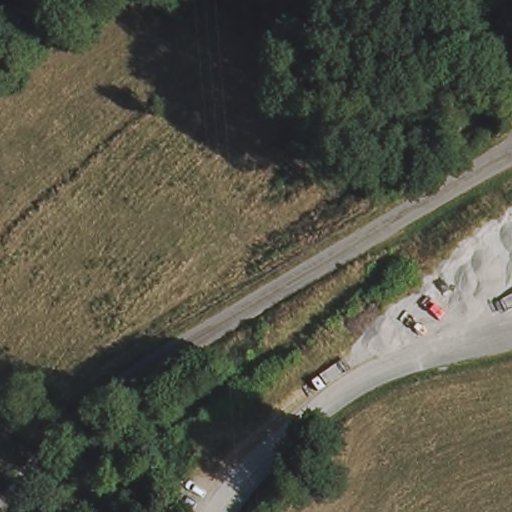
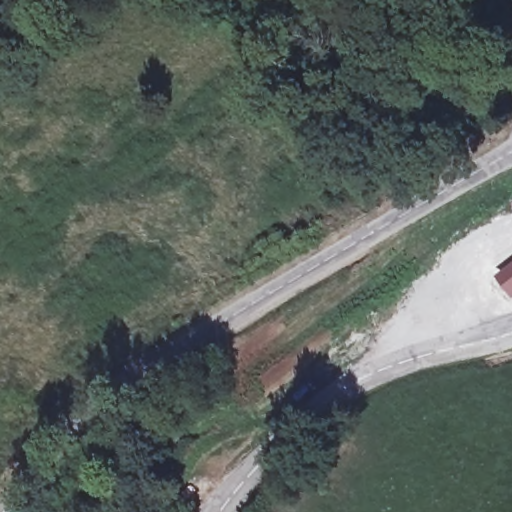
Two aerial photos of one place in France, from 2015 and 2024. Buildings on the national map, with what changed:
new [(512,297),(497,277),(512,265),(512,297)]

